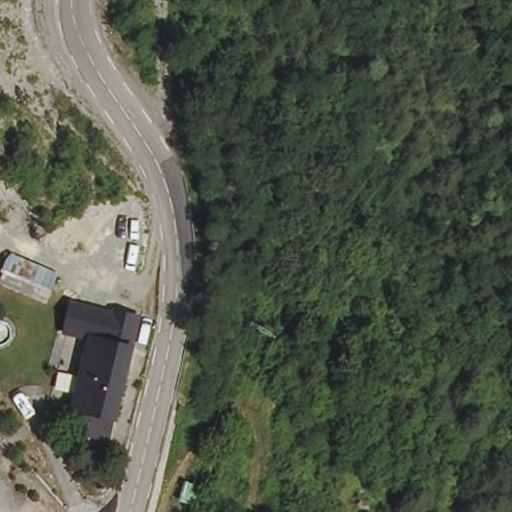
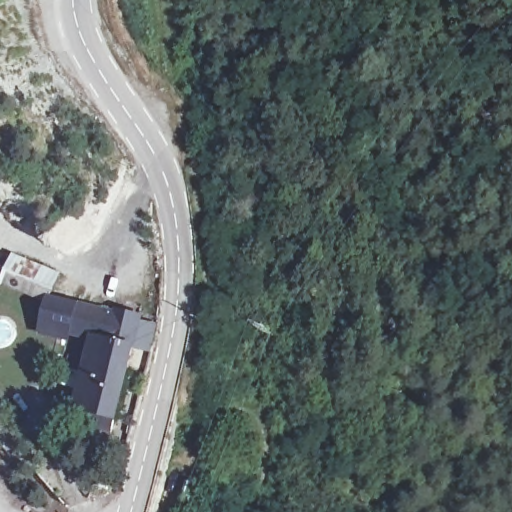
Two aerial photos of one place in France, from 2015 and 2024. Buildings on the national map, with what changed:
unchanged [(0,287),(0,284),(11,254),(61,272),(48,304),(0,287)]
unchanged [(84,445),(91,416),(72,411),(88,340),(64,334),(71,301),(114,311),(115,307),(143,315),(136,346),(138,347),(120,425),(116,424),(111,449),(84,445)]

